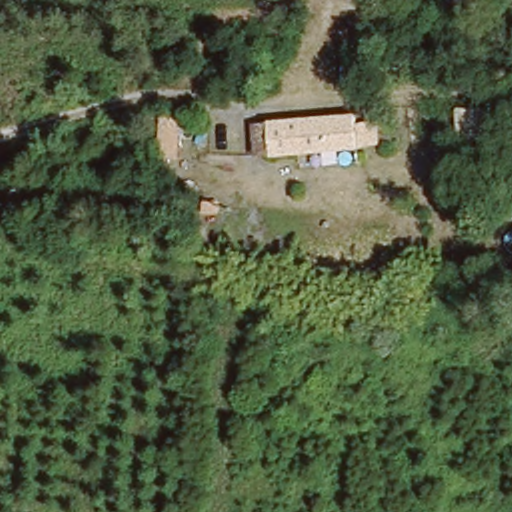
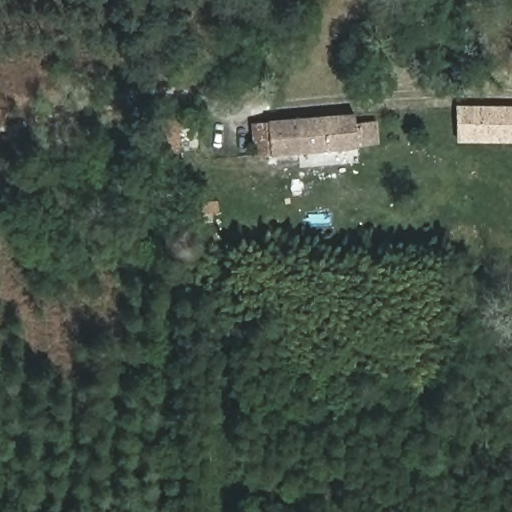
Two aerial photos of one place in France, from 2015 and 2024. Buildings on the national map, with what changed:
new [(460,107),(512,107),(512,142),(460,142),(460,107)]
unchanged [(360,108),(363,148),(278,154),(257,155),(252,113),(256,113),(273,112),(360,108)]
unchanged [(179,131),(193,131),(194,168),(190,170),(190,182),(175,183),(179,131)]

